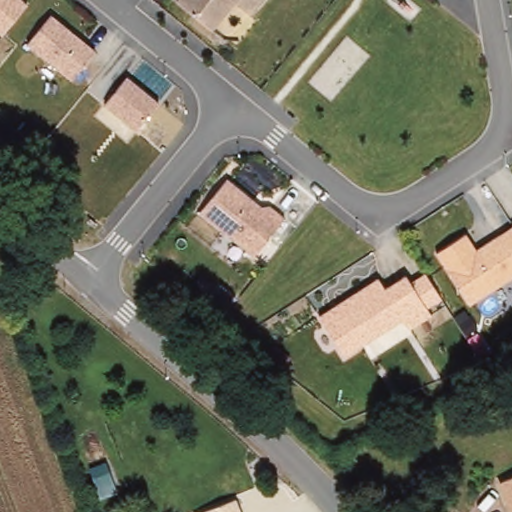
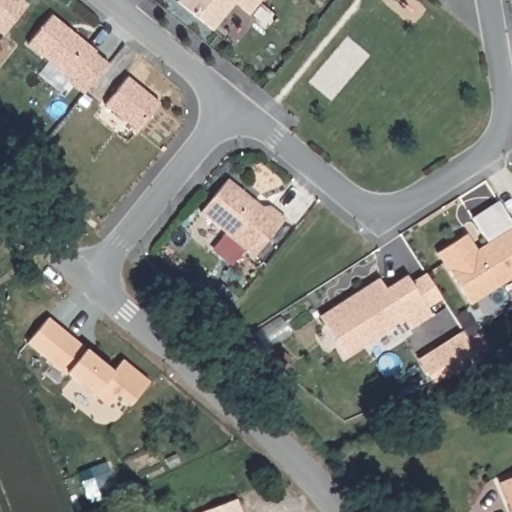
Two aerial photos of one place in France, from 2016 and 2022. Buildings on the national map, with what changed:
unchanged [(27,6),(0,36),(0,0),(20,0),(27,6)]
unchanged [(249,18),(234,5),(209,34),(176,4),(179,0),(264,0),(249,18)]
unchanged [(52,15),(96,52),(71,82),(27,44),(52,15)]
unchanged [(127,77),(159,103),(136,131),(104,103),(127,77)]
unchanged [(260,206),(267,205),(286,218),(256,257),(199,215),(227,178),(260,206)]
unchanged [(512,229),(512,283),(467,310),(435,255),(467,234),(475,250),(512,229)]
unchanged [(385,292),(406,278),(413,286),(426,275),(441,298),(427,308),(436,320),(413,334),(404,321),(345,360),(316,318),(375,277),(385,292)]
new [(87,347),(114,370),(123,358),(150,380),(130,406),(115,394),(106,404),(92,394),(66,372),(28,345),(48,316),(87,347)]
unchanged [(512,476),(512,511),(500,481),(512,476)]
unchanged [(238,497),(244,512),(199,512),(199,511),(238,497)]

